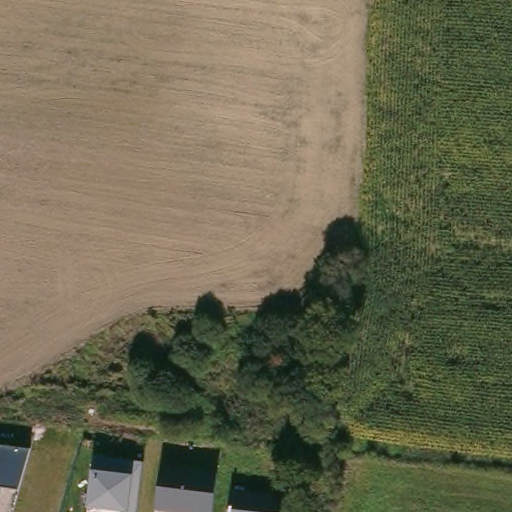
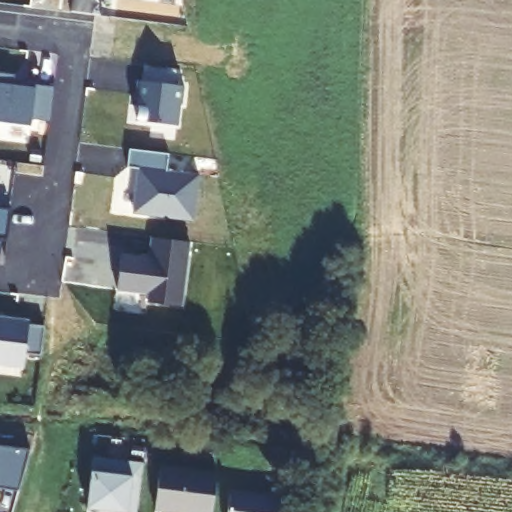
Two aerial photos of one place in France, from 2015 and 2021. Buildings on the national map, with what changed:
new [(0,74),(13,75),(13,86),(34,89),(34,85),(53,88),(49,122),(31,119),(30,127),(0,123),(0,74)]
new [(138,170),(127,169),(129,150),(168,154),(166,173),(199,177),(193,222),(132,214),(138,170)]
new [(6,239),(0,239),(0,207),(10,209),(6,239)]
new [(148,294),(116,290),(120,254),(141,257),(141,254),(148,256),(150,238),(189,243),(182,308),(146,304),(148,294)]
new [(27,324),(43,327),(39,358),(24,354),(22,368),(0,365),(0,317),(28,320),(27,324)]
unchanged [(0,446),(29,450),(18,491),(0,489),(0,446)]
unchanged [(90,472),(93,457),(142,463),(136,512),(109,512),(86,509),(90,472)]
unchanged [(160,467),(216,473),(213,512),(162,512),(154,511),(160,467)]
unchanged [(230,490),(287,498),(286,512),(227,512),(230,490)]

